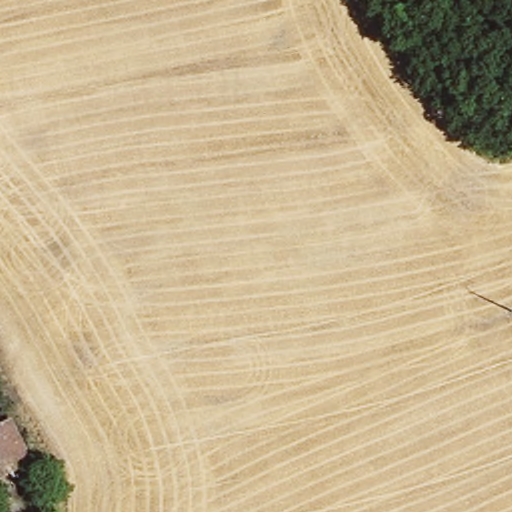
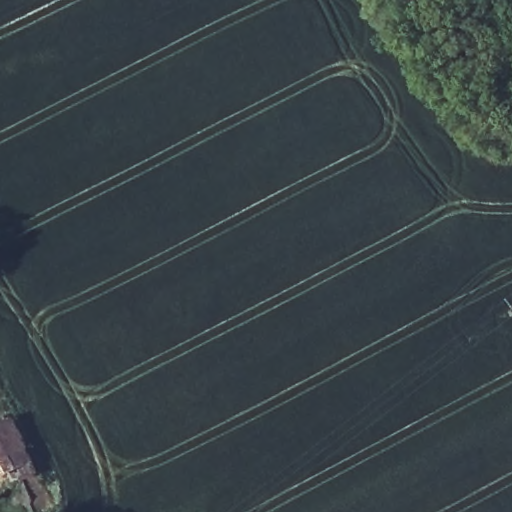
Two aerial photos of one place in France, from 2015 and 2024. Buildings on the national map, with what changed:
unchanged [(0,420),(6,417),(31,459),(0,474),(0,420)]

